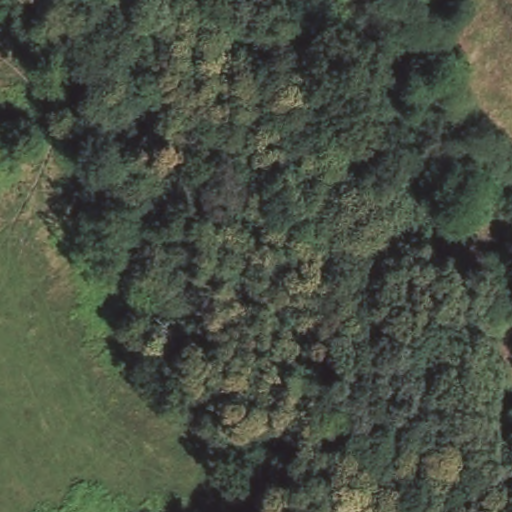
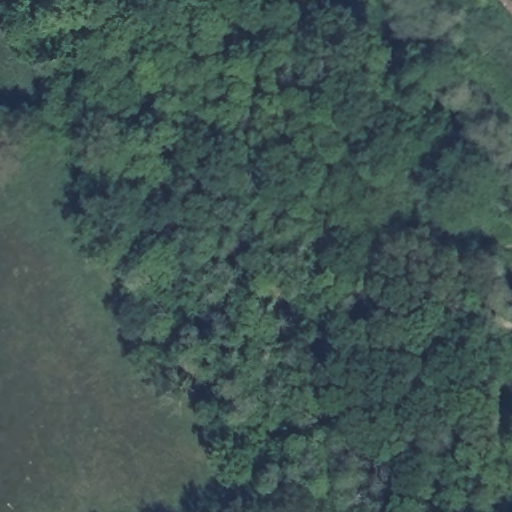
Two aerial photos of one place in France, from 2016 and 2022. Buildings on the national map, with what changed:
[]

